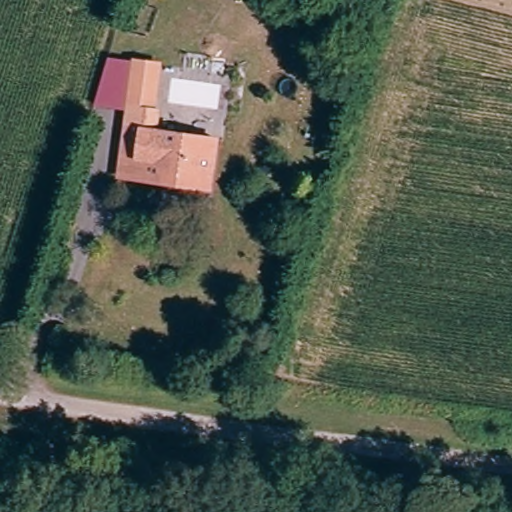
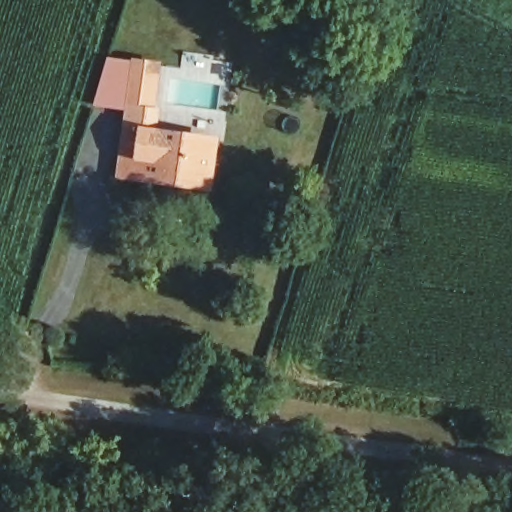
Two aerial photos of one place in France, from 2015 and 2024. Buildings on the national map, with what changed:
unchanged [(169,181),(118,174),(135,69),(155,72),(146,126),(216,136),(210,177),(209,186),(169,181)]

